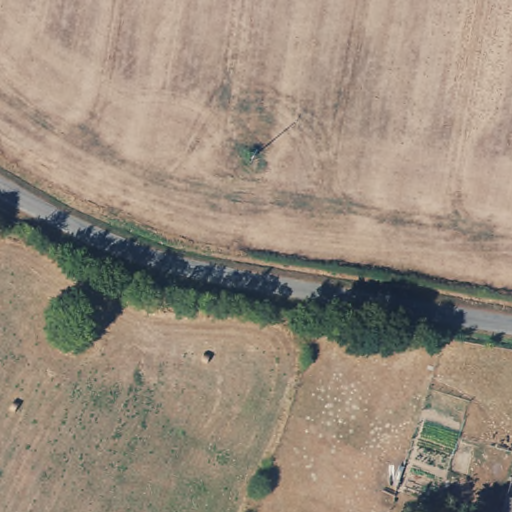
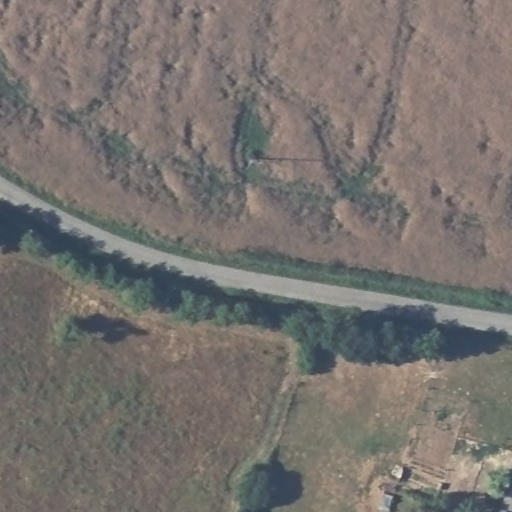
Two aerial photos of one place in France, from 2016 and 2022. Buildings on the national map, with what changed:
unchanged [(498,512),(503,495),(512,497),(512,512),(498,512)]

